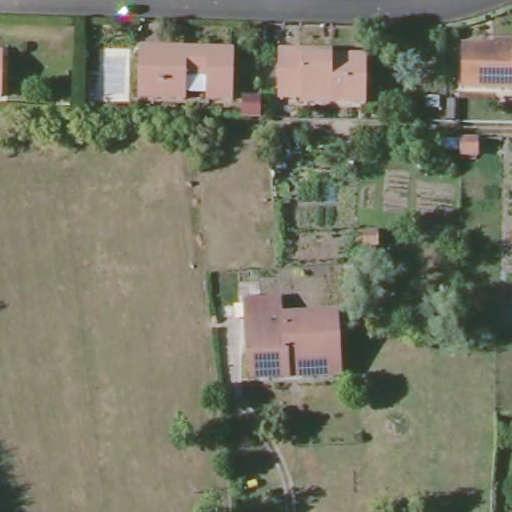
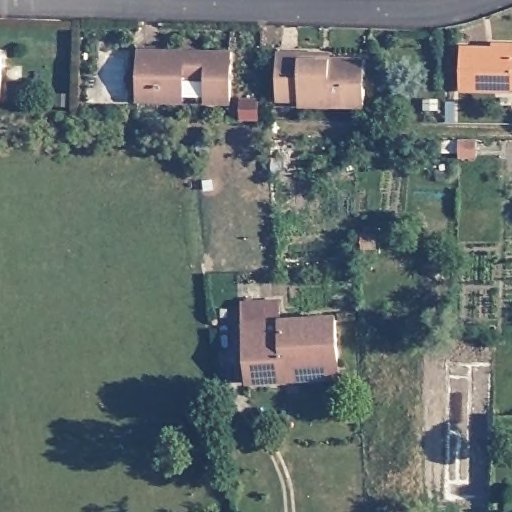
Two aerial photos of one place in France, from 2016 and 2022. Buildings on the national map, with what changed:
unchanged [(512,80),(508,80),(507,88),(459,87),(461,46),(501,47),(501,42),(512,42),(512,80)]
unchanged [(302,47),(303,56),(366,57),(366,104),(303,102),(303,96),(278,95),(279,47),(302,47)]
unchanged [(161,53),(161,58),(198,59),(198,54),(233,55),(233,106),(205,105),(206,78),(183,77),(182,105),(159,105),(159,101),(141,101),(143,52),(161,53)]
unchanged [(461,152),(441,152),(441,139),(461,139),(461,152)]
unchanged [(213,152),(200,152),(199,140),(212,140),(213,152)]
unchanged [(378,245),(365,245),(365,233),(377,233),(378,245)]
unchanged [(339,368),(288,369),(288,379),(250,379),(249,317),(339,317),(339,368)]

